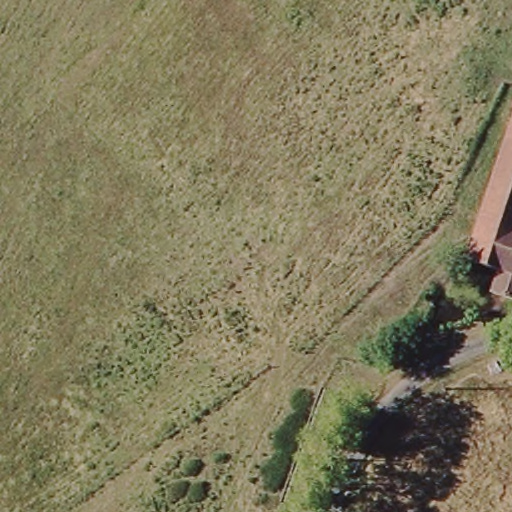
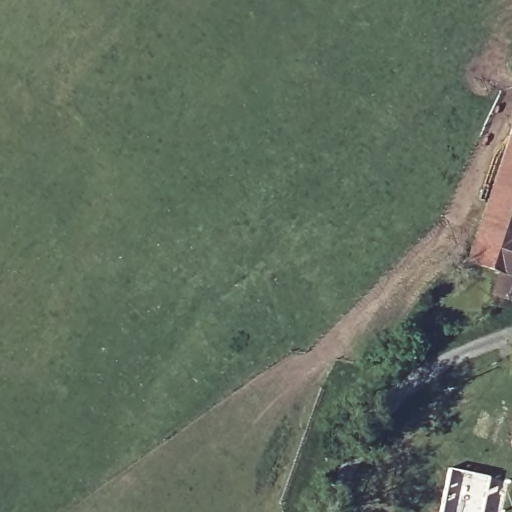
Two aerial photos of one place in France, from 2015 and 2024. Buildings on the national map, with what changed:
unchanged [(510,154),(512,148),(512,154),(510,154)]
unchanged [(485,225),(510,154),(512,154),(512,235),(485,225)]
unchanged [(512,235),(512,300),(493,295),(500,272),(474,263),(485,225),(512,235)]
new [(446,467),(488,475),(482,512),(438,512),(446,467)]

